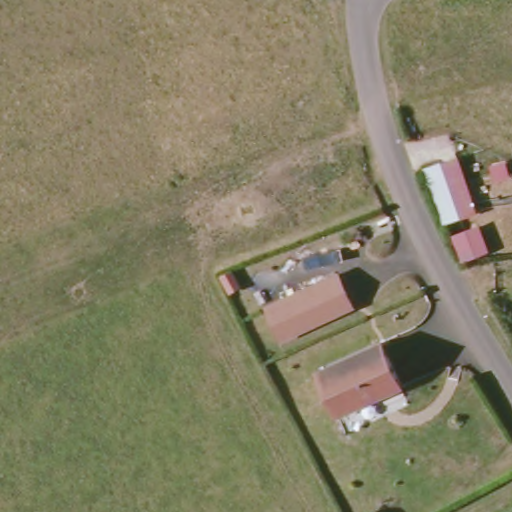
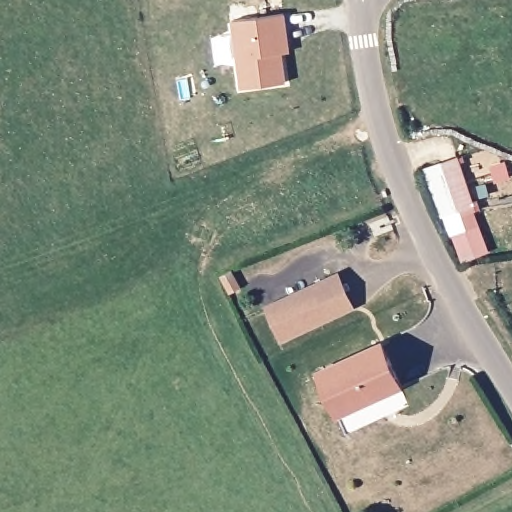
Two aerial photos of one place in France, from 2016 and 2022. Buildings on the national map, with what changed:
new [(231,20),(283,15),(289,51),(284,52),(287,82),(240,87),(231,20)]
unchanged [(420,163),(455,150),(490,243),(472,250),(460,253),(449,228),(462,222),(444,172),(427,178),(420,163)]
unchanged [(274,302),(323,281),(345,272),(347,276),(358,300),(360,304),(337,314),(311,324),(289,334),(288,334),(274,302)]
unchanged [(368,395),(331,411),(312,369),(377,341),(390,372),(395,382),(368,395)]

